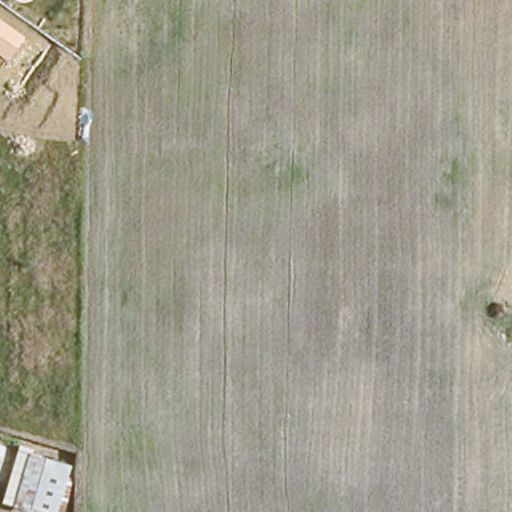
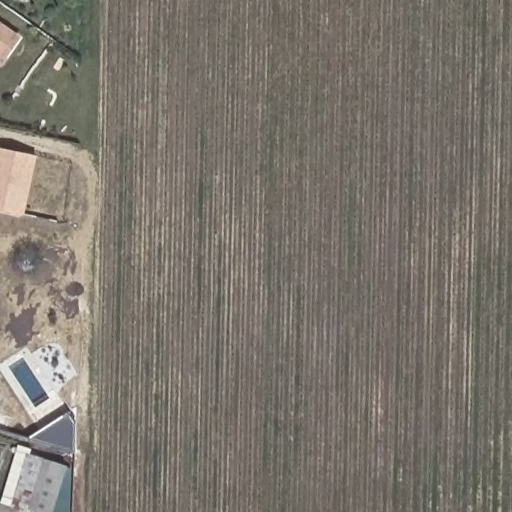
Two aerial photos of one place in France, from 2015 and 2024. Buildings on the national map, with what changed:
unchanged [(0,57),(0,20),(24,38),(6,61),(0,57)]
new [(37,156),(25,215),(0,210),(0,148),(37,156)]
unchanged [(12,489),(22,457),(26,446),(69,463),(54,512),(46,512),(10,498),(12,489)]
unchanged [(12,489),(0,484),(0,449),(22,457),(12,489)]

